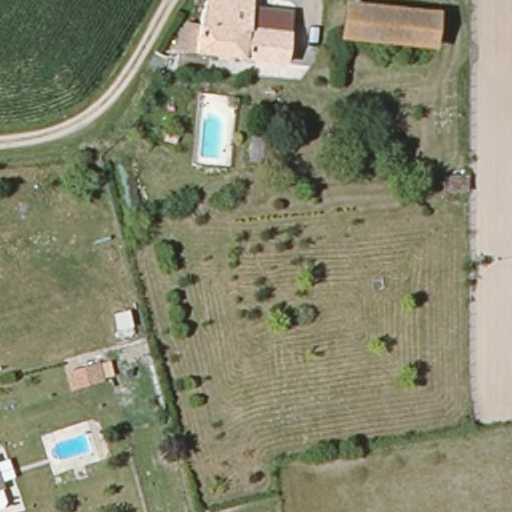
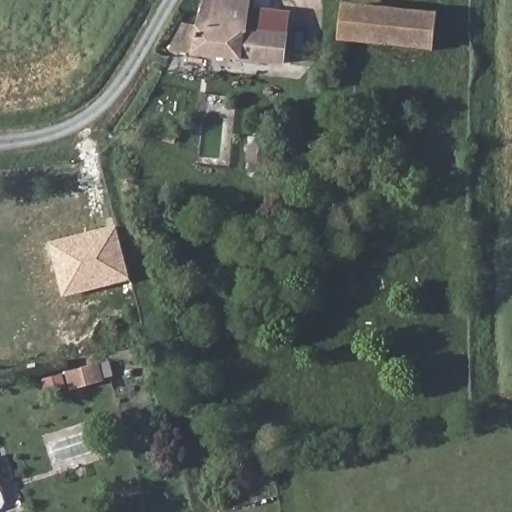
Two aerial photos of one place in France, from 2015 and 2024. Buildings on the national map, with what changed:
unchanged [(253,13),(292,15),(288,68),(176,53),(190,30),(204,30),(210,0),(253,0),(253,13)]
unchanged [(390,45),(348,41),(350,9),(393,13),(390,45)]
unchanged [(439,18),(436,50),(390,45),(393,13),(439,18)]
demolished [(279,113),(267,138),(267,160),(248,159),(249,131),(260,105),(279,113)]
new [(62,297),(48,242),(116,225),(131,280),(62,297)]
unchanged [(94,363),(97,377),(66,385),(63,371),(94,363)]
unchanged [(0,488),(0,469),(6,487),(0,488)]

